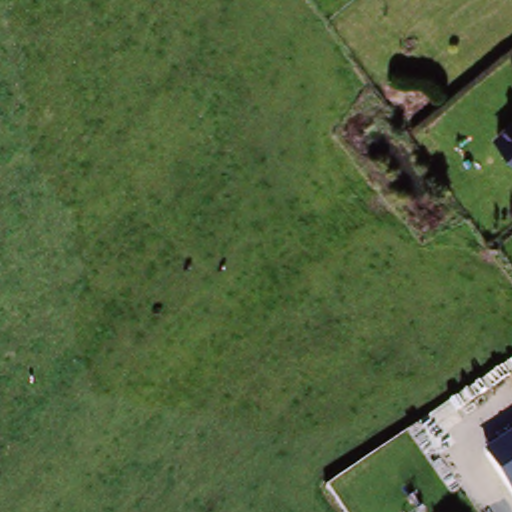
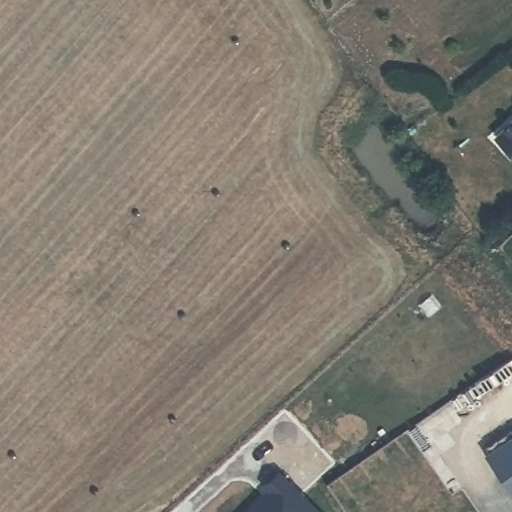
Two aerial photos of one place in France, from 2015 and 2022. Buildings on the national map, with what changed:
unchanged [(512,124),(512,149),(500,134),(512,124)]
unchanged [(512,493),(487,452),(512,437),(512,493)]
new [(254,500),(255,502),(261,497),(256,492),(270,477),(305,512),(242,512),(254,500)]

